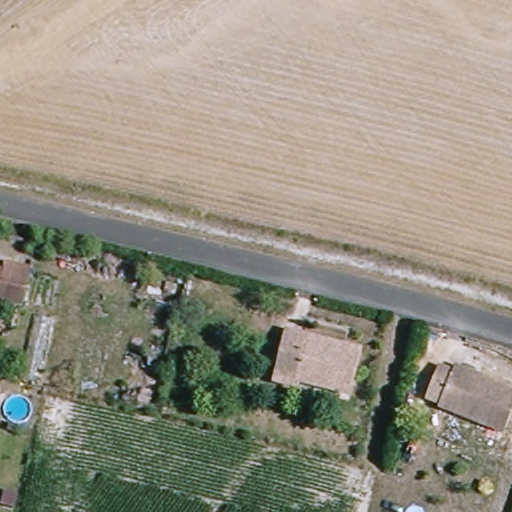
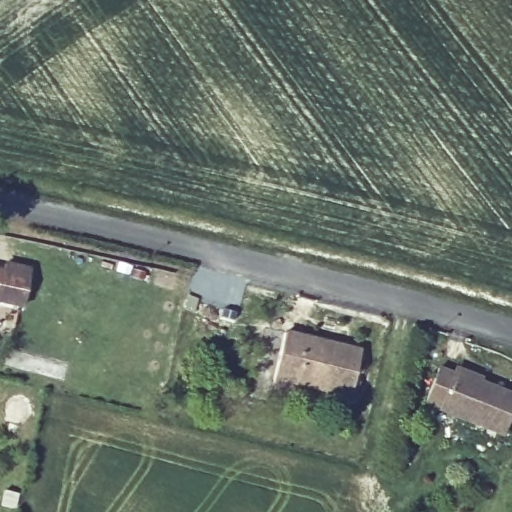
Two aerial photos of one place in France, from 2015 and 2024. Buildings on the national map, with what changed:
unchanged [(7,268),(34,273),(26,313),(0,309),(0,273),(6,274),(7,268)]
unchanged [(280,387),(291,336),(365,351),(355,397),(304,386),(303,392),(280,387)]
unchanged [(456,377),(512,399),(512,417),(504,439),(442,415),(444,412),(428,405),(441,376),(455,381),(456,377)]

